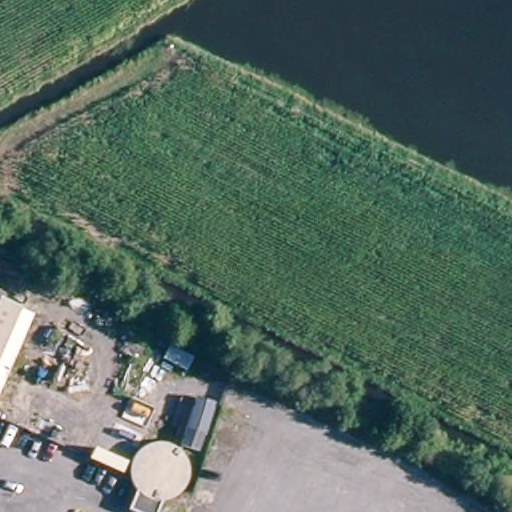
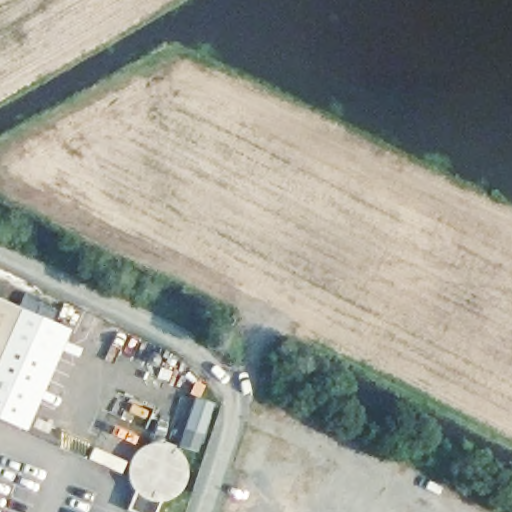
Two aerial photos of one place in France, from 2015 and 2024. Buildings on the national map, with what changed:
unchanged [(17,305),(0,344),(0,298),(17,305)]
new [(69,329),(25,430),(0,419),(0,344),(17,305),(69,329)]
unchanged [(200,450),(180,443),(195,396),(215,403),(200,450)]
demolished [(228,512),(196,512),(212,473),(240,484),(228,512)]

